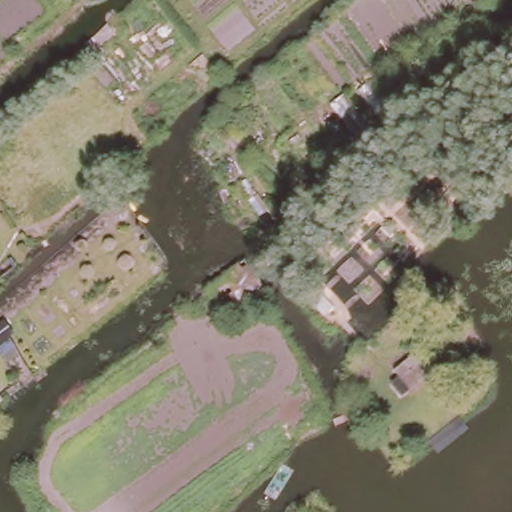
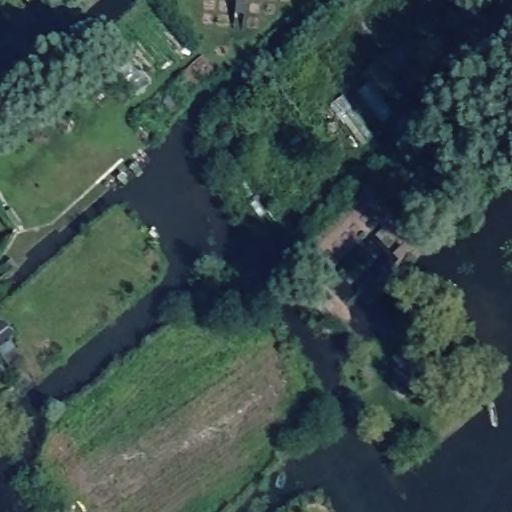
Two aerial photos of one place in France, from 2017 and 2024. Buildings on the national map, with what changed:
unchanged [(512,23),(512,62),(503,50),(507,48),(498,32),(512,23)]
unchanged [(229,322),(210,295),(227,283),(221,272),(241,260),(265,295),(229,322)]
unchanged [(387,371),(412,350),(428,371),(404,393),(387,371)]

